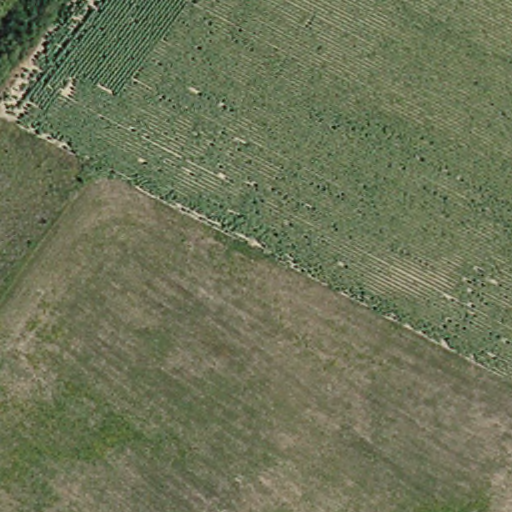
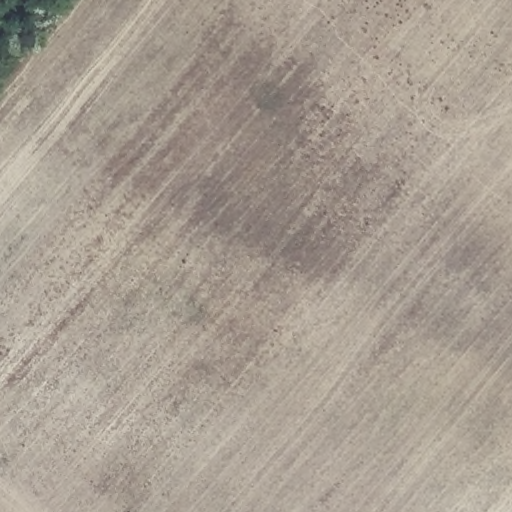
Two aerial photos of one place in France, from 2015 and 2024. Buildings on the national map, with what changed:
[]

